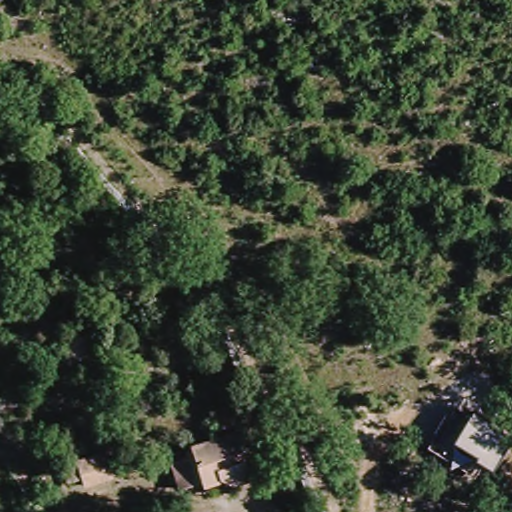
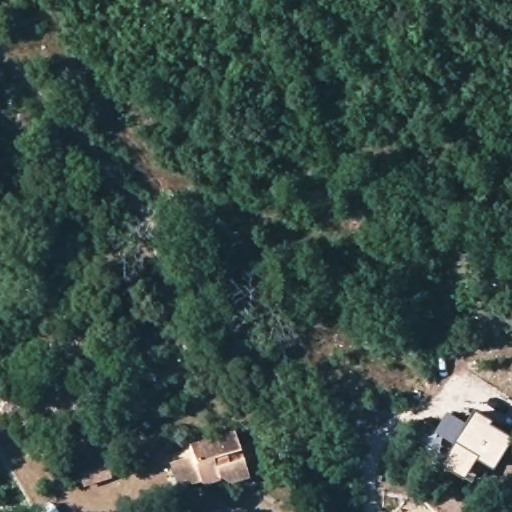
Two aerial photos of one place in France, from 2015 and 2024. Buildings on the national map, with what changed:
unchanged [(461,468),(426,444),(447,408),(469,417),(476,407),(512,432),(512,446),(498,468),(473,452),(461,468)]
unchanged [(246,479),(231,484),(217,474),(177,487),(169,464),(193,456),(193,448),(233,435),(246,479)]
unchanged [(109,473),(82,482),(77,465),(103,456),(109,473)]

